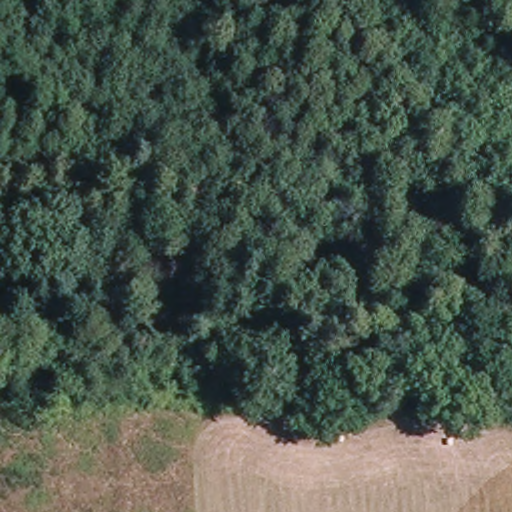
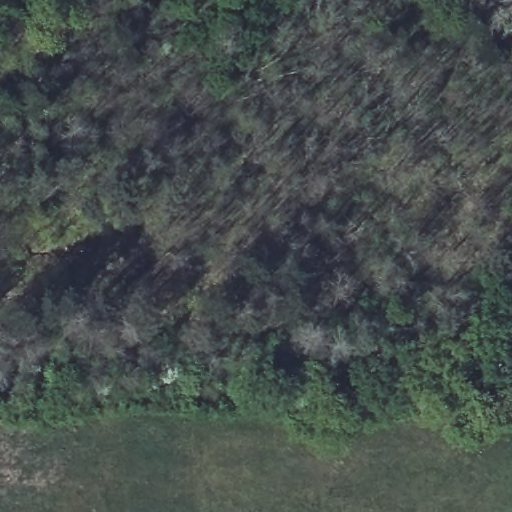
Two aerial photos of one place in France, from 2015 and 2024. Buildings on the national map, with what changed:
[]

